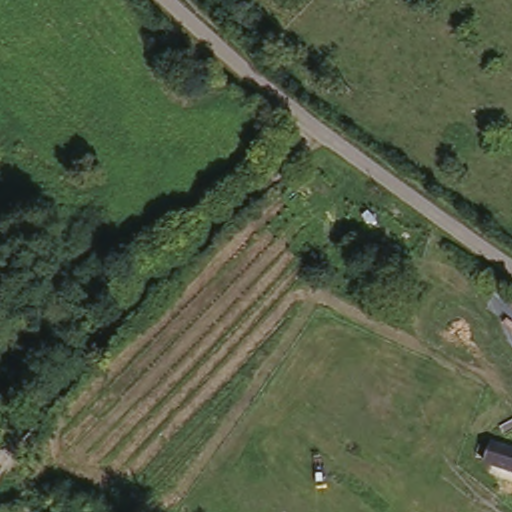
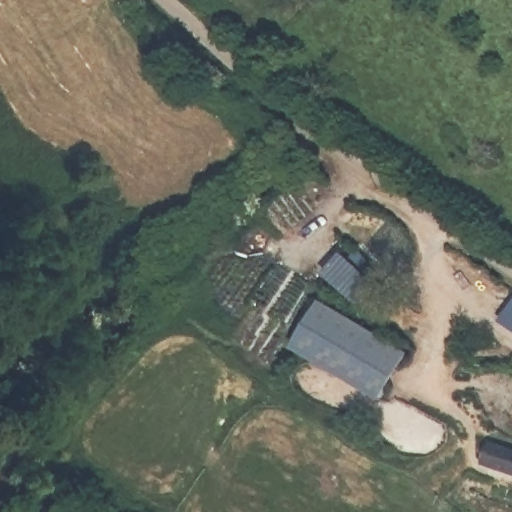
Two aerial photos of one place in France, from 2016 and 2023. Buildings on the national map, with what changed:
demolished [(203,93),(147,63),(159,42),(215,70),(203,93)]
unchanged [(512,300),(512,311),(506,308),(512,300)]
new [(322,302),(411,354),(384,402),(294,350),(322,302)]
unchanged [(492,444),(512,451),(512,476),(485,466),(492,444)]

